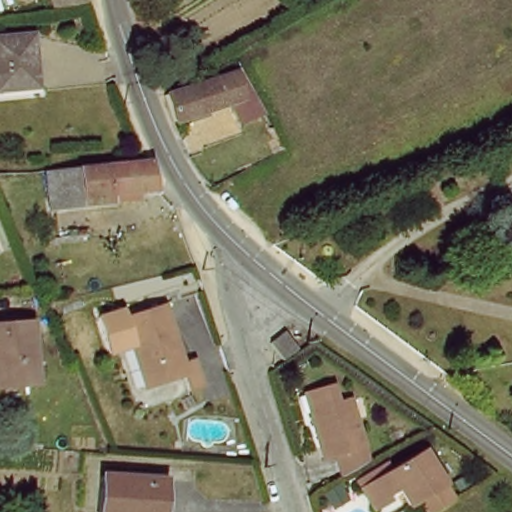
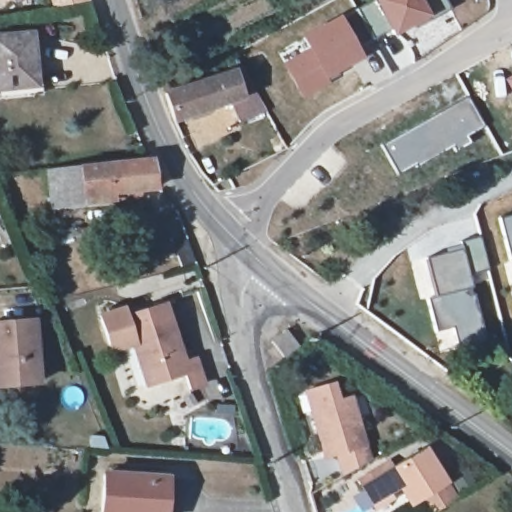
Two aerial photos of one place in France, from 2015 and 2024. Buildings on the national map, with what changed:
new [(367,0),(444,0),(449,9),(430,17),(391,36),(388,32),(370,40),(351,11),(367,0)]
new [(340,14),(363,56),(326,81),(305,47),(298,36),(340,14)]
unchanged [(0,89),(0,36),(36,31),(41,84),(0,89)]
new [(305,47),(326,81),(330,87),(301,103),(280,63),(305,47)]
unchanged [(242,123),(236,104),(178,124),(170,92),(249,63),(273,110),(242,123)]
new [(512,75),(512,96),(503,80),(512,75)]
new [(468,95),(484,126),(466,137),(470,143),(455,152),(452,147),(395,175),(377,145),(468,95)]
unchanged [(148,162),(151,161),(157,189),(113,193),(113,198),(51,202),(48,168),(67,167),(148,162)]
new [(507,263),(497,217),(512,213),(512,262),(507,263)]
new [(431,296),(419,258),(459,242),(480,236),(489,271),(471,276),(473,286),(431,296)]
new [(431,296),(473,286),(491,346),(455,356),(449,331),(434,335),(423,298),(431,296)]
unchanged [(131,323),(138,348),(111,358),(98,317),(126,307),(129,318),(131,323)]
unchanged [(148,373),(138,348),(131,323),(171,309),(195,375),(165,386),(153,389),(148,373)]
unchanged [(3,386),(0,355),(0,324),(38,321),(43,384),(3,386)]
unchanged [(332,476),(307,390),(336,378),(342,399),(358,394),(373,456),(332,476)]
unchanged [(366,486),(383,477),(437,450),(456,488),(421,507),(411,489),(394,499),(376,509),(366,486)]
unchanged [(105,512),(108,469),(170,473),(168,512),(105,512)]

